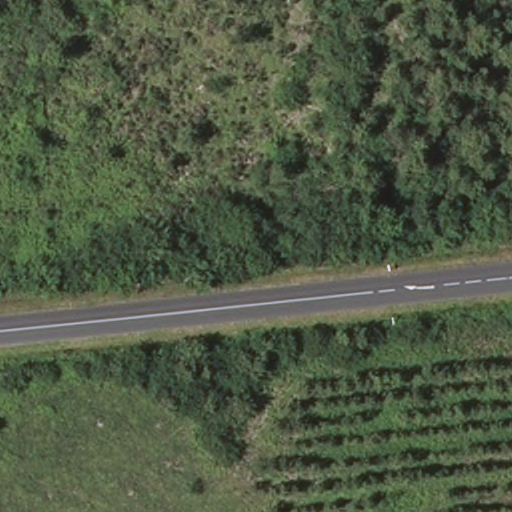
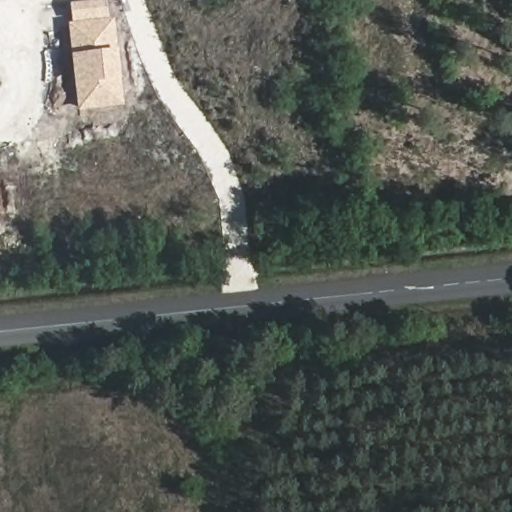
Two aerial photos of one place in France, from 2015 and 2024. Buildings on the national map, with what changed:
new [(76,85),(72,54),(69,23),(73,22),(71,3),(99,0),(107,0),(110,18),(116,17),(120,49),(122,79),(125,106),(80,110),(76,85)]

